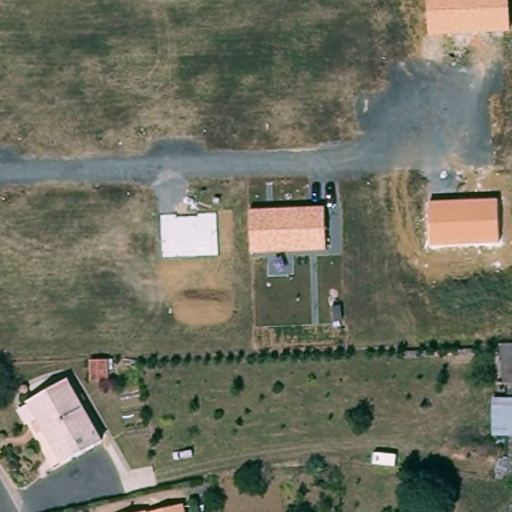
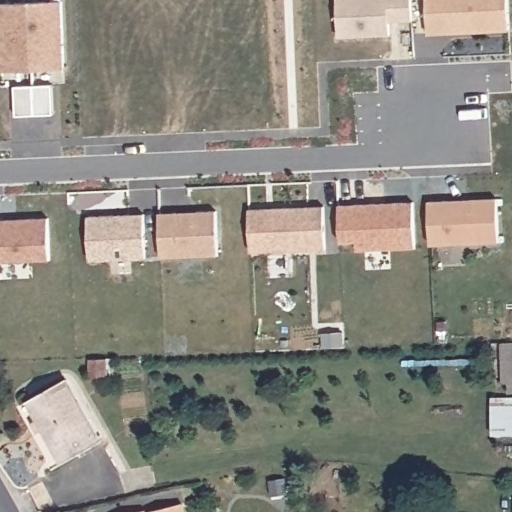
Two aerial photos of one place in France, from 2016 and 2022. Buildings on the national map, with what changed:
new [(337,0),(412,0),(413,23),(390,24),(391,37),(339,39),(337,0)]
unchanged [(508,0),(510,31),(429,36),(427,0),(508,0)]
new [(0,4),(62,2),(65,70),(1,72),(0,61),(0,4)]
unchanged [(498,200),(499,243),(430,246),(429,203),(498,200)]
new [(339,206),(414,202),(415,249),(357,251),(357,242),(341,242),(339,206)]
unchanged [(326,249),(252,252),(249,211),(324,207),(326,249)]
new [(158,214),(217,212),(219,256),(161,258),(158,214)]
new [(87,217),(144,215),(146,260),(89,262),(87,217)]
new [(50,261),(0,263),(0,220),(49,218),(50,261)]
unchanged [(86,387),(85,363),(100,363),(101,386),(86,387)]
unchanged [(102,438),(64,461),(28,398),(65,377),(102,438)]
unchanged [(455,471),(454,478),(437,477),(439,469),(455,471)]
unchanged [(138,509),(139,512),(174,498),(178,512),(129,512),(138,509)]

